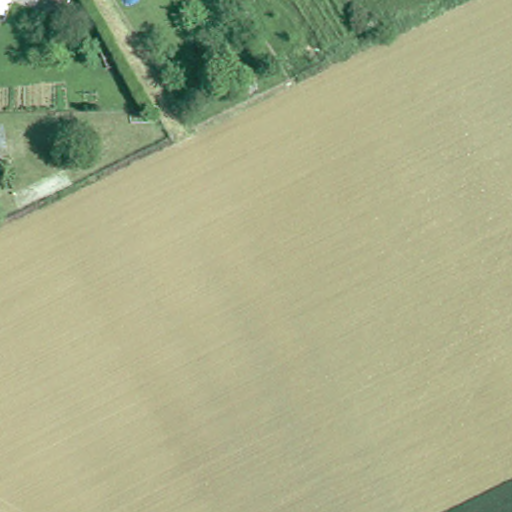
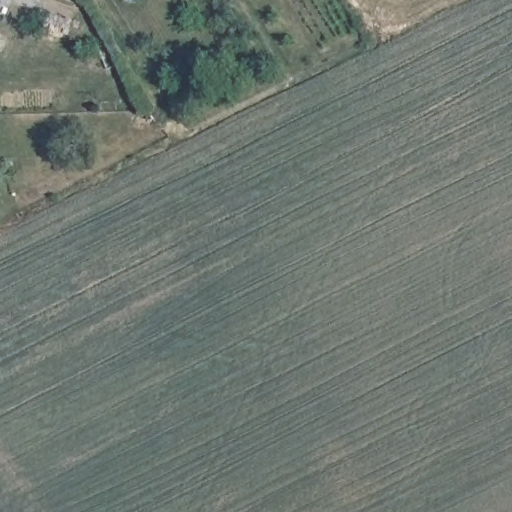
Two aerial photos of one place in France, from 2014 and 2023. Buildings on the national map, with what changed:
unchanged [(23,141),(5,142),(4,128),(23,127),(23,141)]

